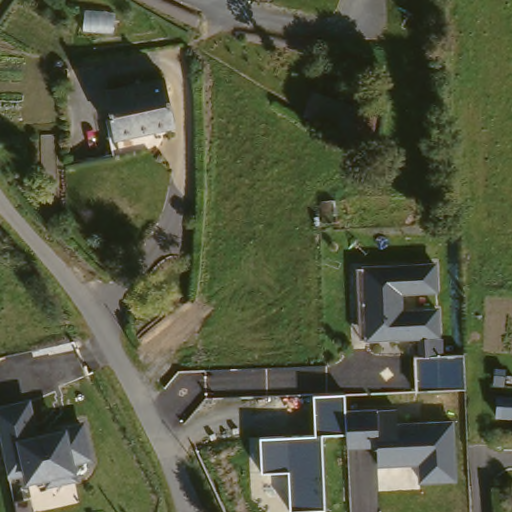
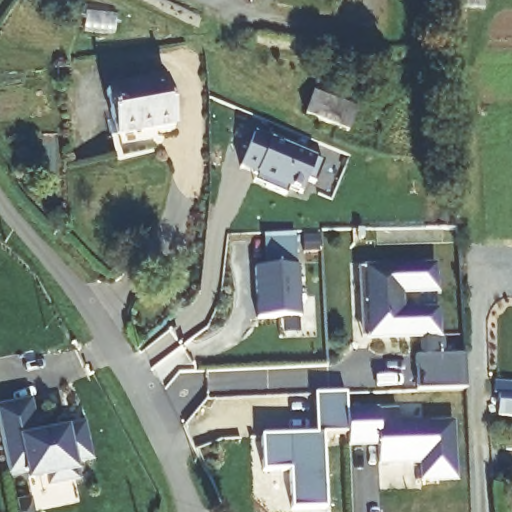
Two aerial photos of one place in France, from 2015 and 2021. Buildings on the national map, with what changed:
unchanged [(156,137),(120,144),(117,127),(108,82),(167,70),(174,117),(159,120),(156,137)]
unchanged [(349,134),(306,115),(315,92),(321,95),(325,83),(347,92),(343,104),(359,111),(349,134)]
new [(253,132),(269,139),(314,157),(322,161),(314,182),(308,179),(301,193),(289,189),(286,195),(253,181),(256,174),(239,168),(253,132)]
new [(255,267),(265,267),(263,235),(295,234),(297,266),(299,317),(257,320),(255,267)]
unchanged [(358,272),(357,264),(364,263),(435,261),(436,268),(436,287),(400,288),(401,307),(437,306),(438,332),(412,333),(368,335),(361,335),(358,272)]
unchanged [(412,333),(438,332),(438,352),(464,352),(465,392),(415,383),(412,333)]
unchanged [(288,470),(263,471),(260,437),(314,436),(314,392),(335,392),(345,391),(345,435),(326,436),(328,508),(290,510),(288,470)]
unchanged [(36,399),(41,429),(47,433),(54,432),(56,430),(89,423),(95,456),(77,459),(80,476),(55,481),(53,472),(34,476),(32,467),(14,471),(9,447),(4,416),(2,406),(36,399)]
unchanged [(512,403),(512,423),(497,423),(498,403),(512,403)]
unchanged [(402,407),(402,422),(458,420),(460,477),(426,478),(425,454),(417,454),(418,461),(383,462),(382,442),(353,443),(352,413),(352,410),(402,407)]

